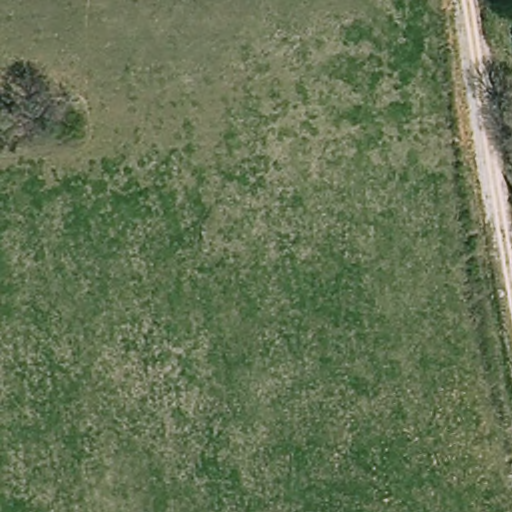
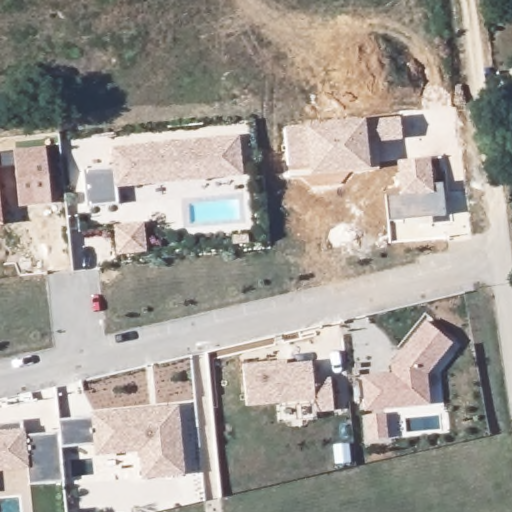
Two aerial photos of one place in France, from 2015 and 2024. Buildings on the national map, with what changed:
new [(377,143),(378,167),(370,167),(310,175),(309,166),(290,167),(285,129),(307,127),(366,118),(399,117),(402,141),(377,143)]
new [(113,167),(112,148),(240,136),(243,176),(117,188),(118,205),(87,207),(83,171),(113,167)]
new [(46,147),(52,205),(19,208),(13,151),(46,147)]
new [(446,216),(390,219),(387,195),(401,194),(397,161),(430,158),(433,183),(442,183),(446,216)]
new [(0,226),(0,201),(2,225),(0,226)]
new [(145,222),(148,253),(117,256),(115,226),(145,222)]
new [(391,373),(390,364),(426,321),(453,343),(428,376),(430,406),(365,411),(362,376),(391,373)]
new [(315,401),(247,406),(243,366),(288,361),(288,365),(312,363),(314,379),(332,378),(335,411),(316,413),(315,401)]
new [(64,482),(30,486),(27,469),(0,472),(0,424),(23,422),(23,429),(25,429),(27,436),(60,432),(59,420),(92,417),(91,413),(180,405),(185,477),(142,480),(140,451),(94,457),(93,446),(62,449),(64,482)]
new [(386,413),(389,439),(368,442),(365,416),(386,413)]

